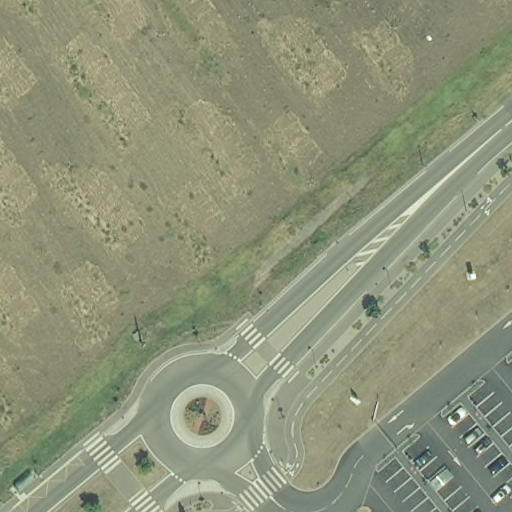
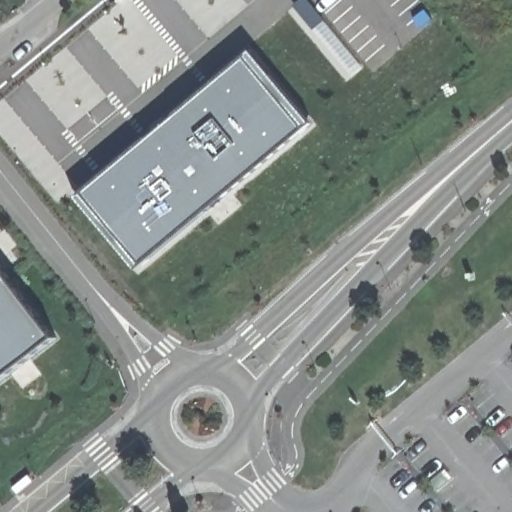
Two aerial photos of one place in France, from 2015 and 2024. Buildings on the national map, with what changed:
new [(308,0),(324,21),(314,29),(296,6),(302,0),(308,0)]
new [(3,11),(0,13),(0,6),(3,11)]
new [(325,21),(363,67),(355,74),(318,28),(325,21)]
new [(252,50),(313,123),(307,128),(225,197),(224,196),(219,200),(221,202),(213,207),(213,206),(207,211),(208,211),(137,270),(76,197),(147,138),(148,138),(153,134),(151,133),(169,118),(171,119),(176,115),(175,114),(252,50)]
new [(58,338),(0,381),(0,264),(58,338)]
new [(446,469),(453,477),(437,491),(430,483),(446,469)]

